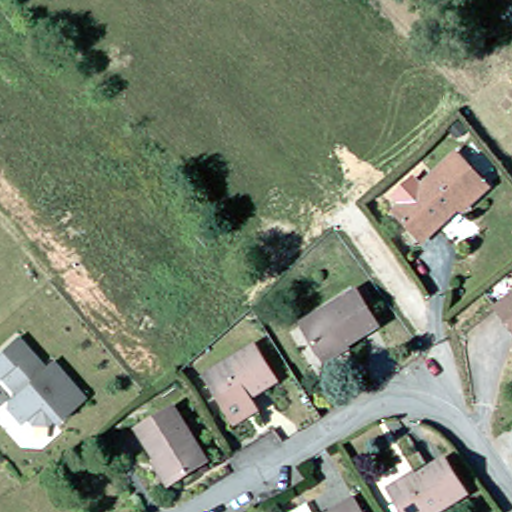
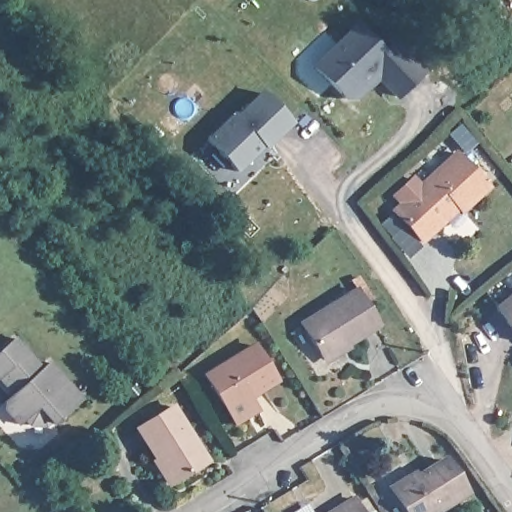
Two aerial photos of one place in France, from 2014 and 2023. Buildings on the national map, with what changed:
new [(423,73),(398,98),(380,80),(360,99),(345,100),(312,65),(356,23),(385,50),(395,44),(423,73)]
new [(263,145),(236,174),(202,141),(235,110),(236,112),(261,89),(293,123),(266,148),(263,145)]
unchanged [(462,202),(438,169),(461,148),(492,183),(465,206),(462,202)]
unchanged [(423,235),(395,206),(438,169),(462,202),(423,235)]
unchanged [(381,326),(322,352),(305,315),(363,288),(381,326)]
unchanged [(497,307),(512,296),(512,326),(497,307)]
unchanged [(0,350),(20,334),(46,368),(55,362),(85,402),(54,426),(51,423),(45,427),(30,425),(25,419),(18,424),(5,407),(5,400),(15,392),(0,375),(0,350)]
unchanged [(282,379),(232,410),(210,373),(260,343),(282,379)]
unchanged [(175,403),(213,455),(181,479),(143,427),(175,403)]
unchanged [(471,488),(434,512),(414,512),(395,481),(413,470),(416,474),(450,453),(471,488)]
unchanged [(333,512),(360,496),(369,512),(333,512)]

